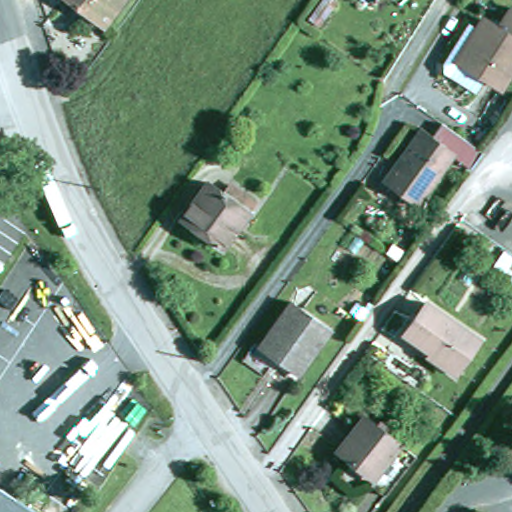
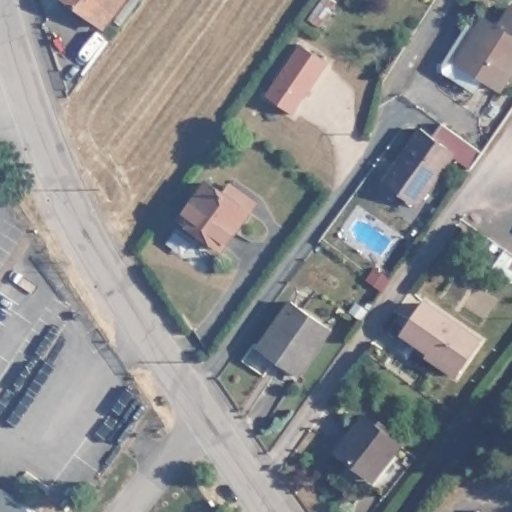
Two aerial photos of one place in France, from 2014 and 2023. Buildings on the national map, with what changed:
unchanged [(105,26),(69,0),(123,0),(105,26)]
unchanged [(512,9),(512,71),(500,89),(485,79),(476,92),(445,72),(457,63),(484,19),(500,29),(512,9)]
new [(299,42),(327,62),(290,113),(263,93),(299,42)]
unchanged [(402,191),(388,180),(414,144),(411,142),(421,127),(424,129),(434,136),(442,124),(483,153),(471,169),(454,157),(424,199),(420,204),(402,191)]
unchanged [(225,194),(228,190),(235,196),(239,192),(255,204),(222,249),(182,219),(209,183),(225,194)]
unchanged [(372,303),(360,320),(350,312),(362,296),(372,303)]
unchanged [(258,346),(292,301),(298,306),(332,332),(299,375),(265,351),(258,346)]
unchanged [(402,334),(425,303),(480,341),(457,372),(402,334)]
unchanged [(406,448),(375,487),(359,474),(362,470),(327,441),(355,407),(406,448)]
unchanged [(41,512),(0,512),(0,482),(42,511),(41,512)]

